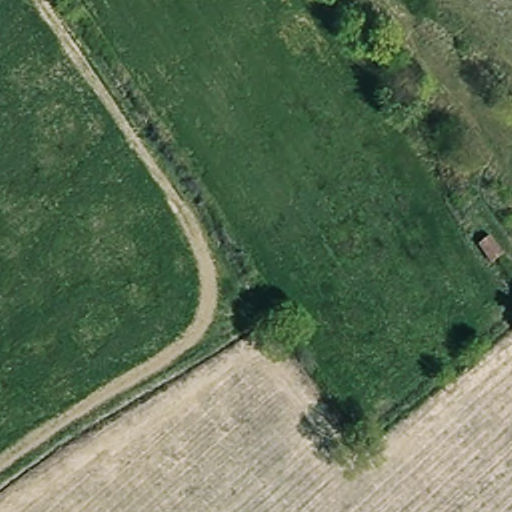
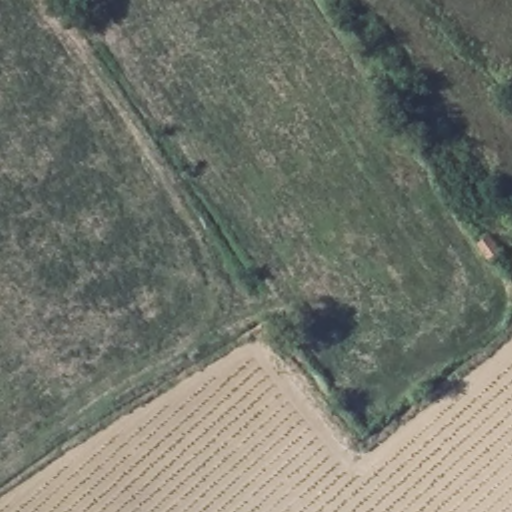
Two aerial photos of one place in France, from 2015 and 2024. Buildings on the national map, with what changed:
unchanged [(489,260),(477,246),(488,238),(499,255),(489,260)]

